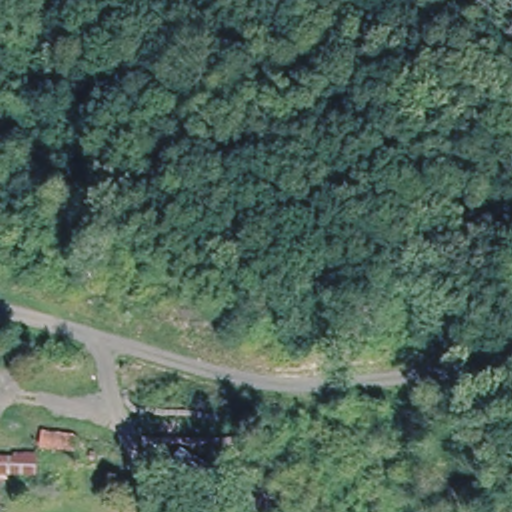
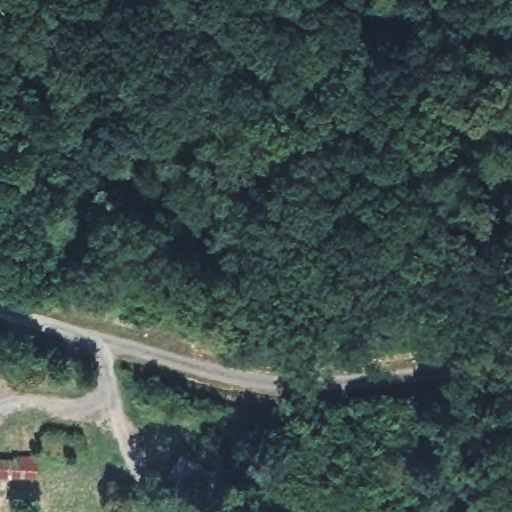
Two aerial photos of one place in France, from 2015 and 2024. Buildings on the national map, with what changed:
unchanged [(68,450),(42,447),(44,434),(69,436),(68,450)]
unchanged [(15,475),(0,475),(0,458),(15,458),(15,455),(32,455),(32,475),(15,475)]

